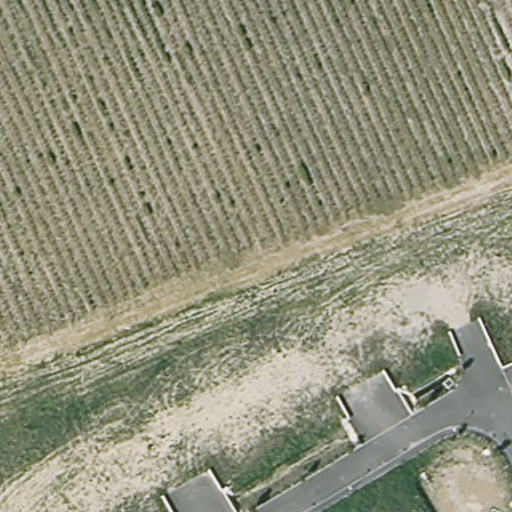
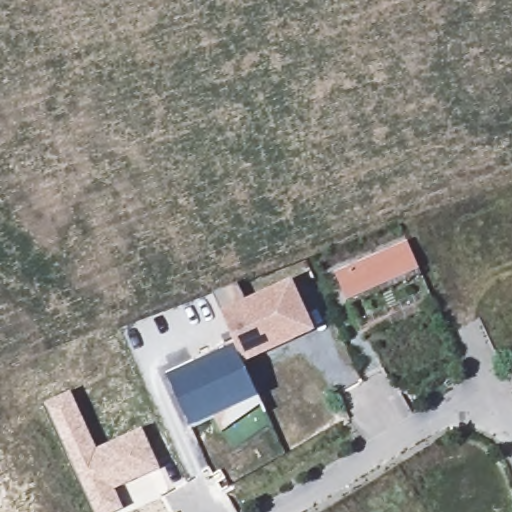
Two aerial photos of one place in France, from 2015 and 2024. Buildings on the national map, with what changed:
new [(407,243),(419,271),(347,302),(334,273),(407,243)]
new [(295,282),(318,334),(246,367),(222,316),(295,282)]
new [(193,431),(169,380),(238,350),(246,367),(261,400),(193,431)]
new [(125,512),(92,512),(43,406),(72,393),(98,452),(144,431),(163,472),(118,492),(126,512),(125,512)]

